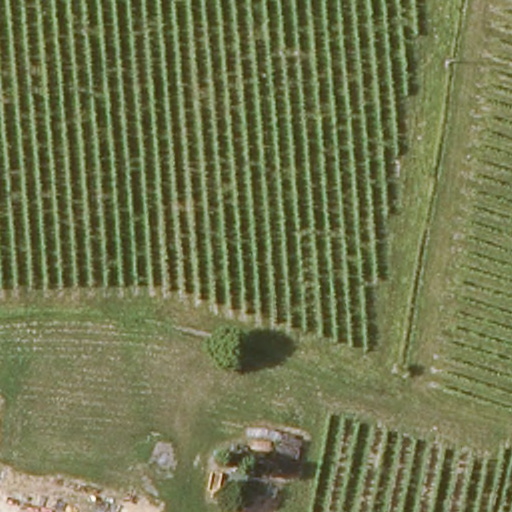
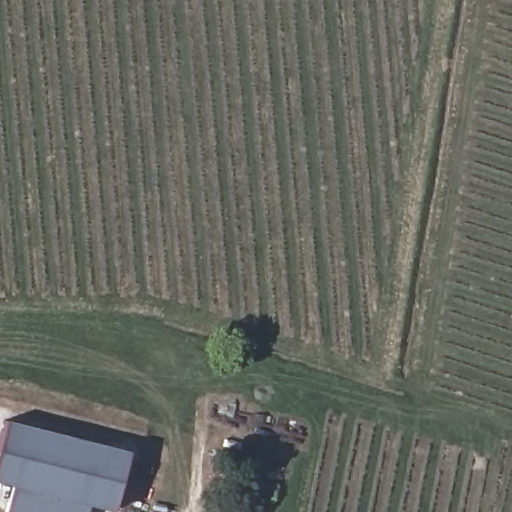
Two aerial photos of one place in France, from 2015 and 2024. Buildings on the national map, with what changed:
new [(15,490),(0,486),(0,444),(5,425),(129,455),(115,512),(107,512),(89,507),(88,512),(10,512),(15,490)]

